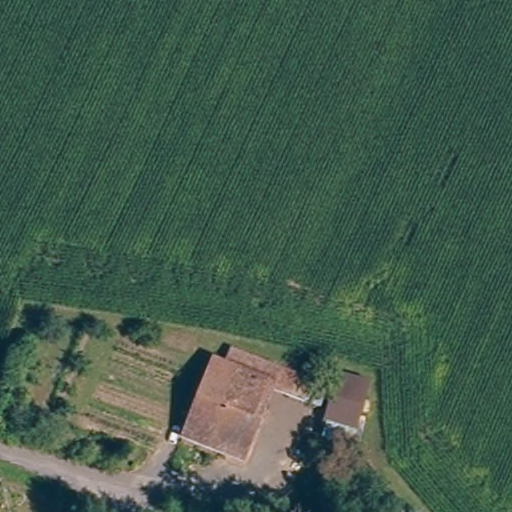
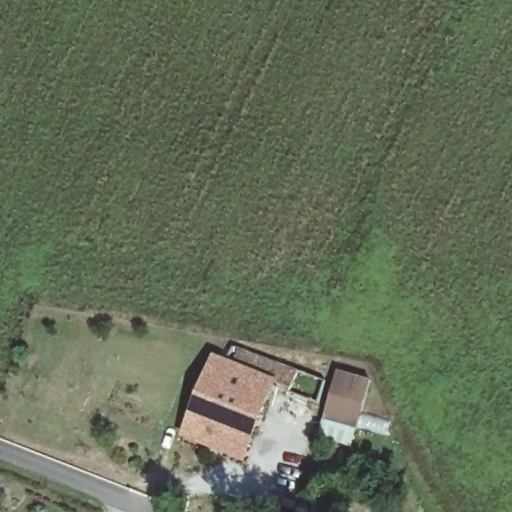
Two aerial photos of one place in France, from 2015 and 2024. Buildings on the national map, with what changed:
unchanged [(314,381),(308,396),(276,384),(229,367),(235,352),(314,381)]
unchanged [(222,452),(189,441),(217,363),(229,367),(276,384),(250,455),(249,462),(222,452)]
unchanged [(362,427),(344,423),(330,420),(342,372),(359,376),(374,379),(362,427)]

